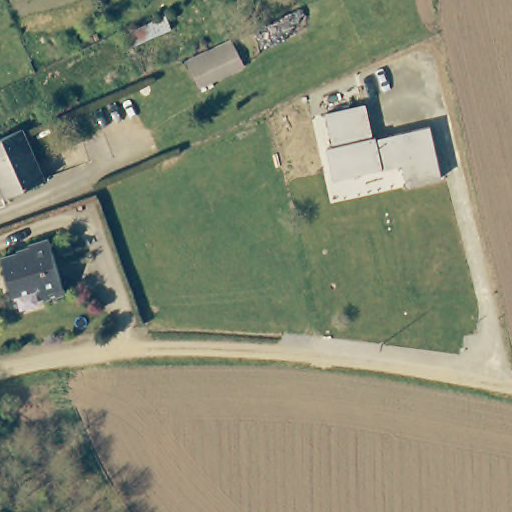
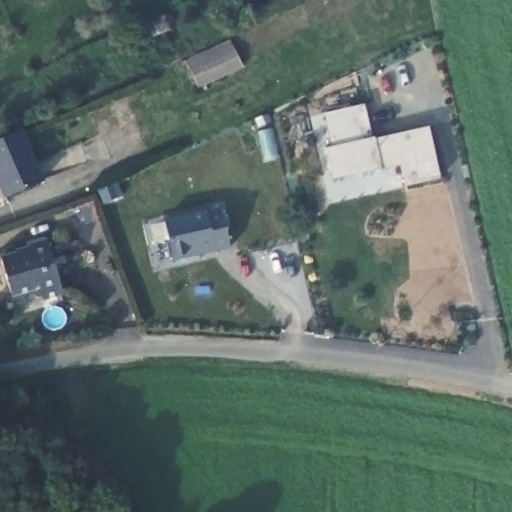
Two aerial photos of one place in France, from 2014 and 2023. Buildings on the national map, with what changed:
unchanged [(233,38),(243,59),(245,65),(200,87),(198,81),(188,60),(233,38)]
unchanged [(364,104),(373,136),(374,139),(429,126),(441,178),(407,186),(402,166),(383,170),(334,180),(327,148),(333,146),(324,113),(364,104)]
unchanged [(21,123),(31,143),(45,171),(8,191),(0,175),(0,132),(20,121),(21,123)]
new [(164,220),(221,209),(230,249),(175,261),(164,220)]
unchanged [(50,240),(67,295),(45,302),(41,287),(14,296),(1,255),(50,240)]

